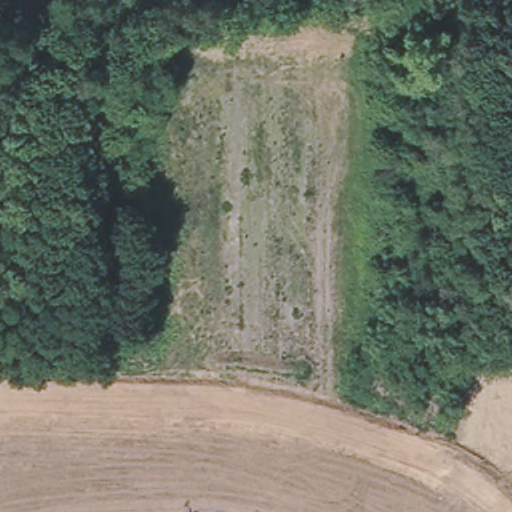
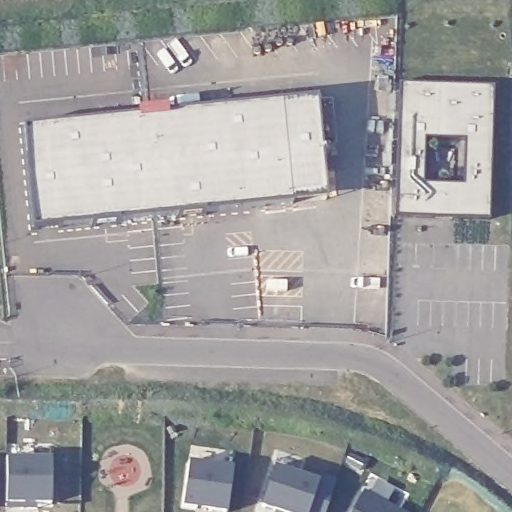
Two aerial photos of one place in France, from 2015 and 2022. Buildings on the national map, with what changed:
new [(398,86),(494,88),(490,223),(395,220),(398,86)]
new [(24,129),(317,99),(327,199),(34,230),(24,129)]
new [(6,463),(51,463),(50,508),(37,508),(37,512),(6,512),(6,463)]
new [(188,467),(232,473),(227,512),(206,512),(196,510),(196,512),(189,512),(182,511),(188,467)]
new [(261,511),(274,472),(317,486),(320,481),(335,486),(327,512),(264,512),(261,511)]
new [(410,512),(353,512),(366,489),(410,512)]

